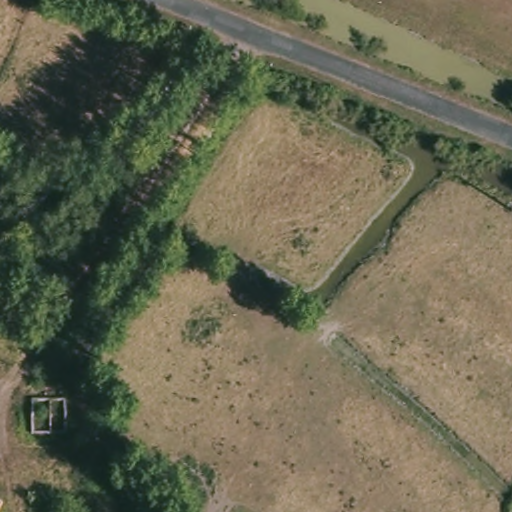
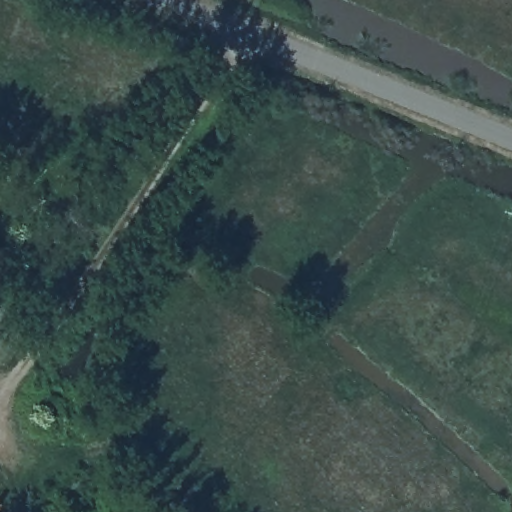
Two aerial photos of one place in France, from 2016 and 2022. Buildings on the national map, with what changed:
unchanged [(60,404),(62,432),(36,434),(34,408),(60,404)]

